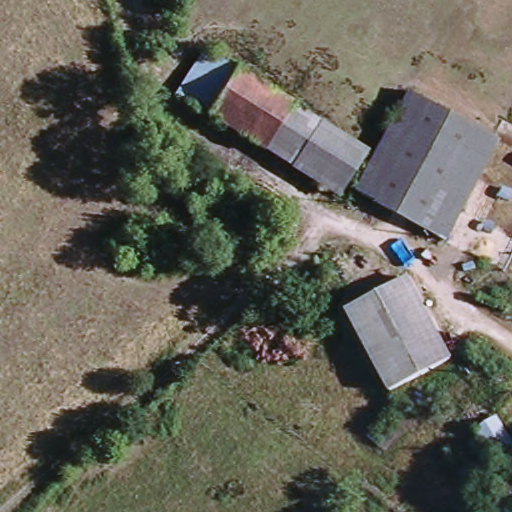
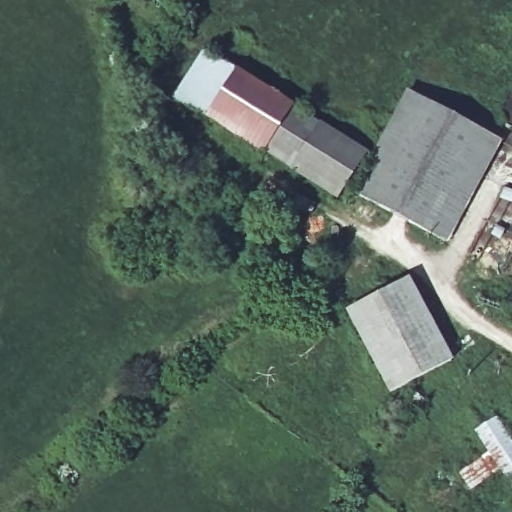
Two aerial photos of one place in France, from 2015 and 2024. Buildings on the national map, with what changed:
unchanged [(196,62),(223,79),(230,71),(284,106),(287,107),(259,151),(257,154),(172,98),(196,62)]
unchanged [(447,240),(359,188),(358,188),(375,158),(415,91),(502,140),(447,240)]
unchanged [(375,158),(358,188),(352,196),(342,190),(336,198),(259,151),(287,107),(375,158)]
unchanged [(263,184),(270,173),(277,164),(291,175),(285,184),(278,195),(263,184)]
unchanged [(412,279),(455,362),(391,395),(345,311),(412,279)]
unchanged [(484,452),(470,432),(495,416),(512,447),(512,477),(506,480),(500,472),(466,491),(455,474),(484,452)]

